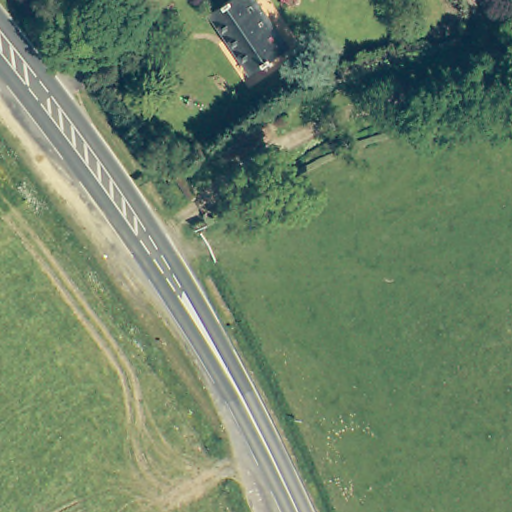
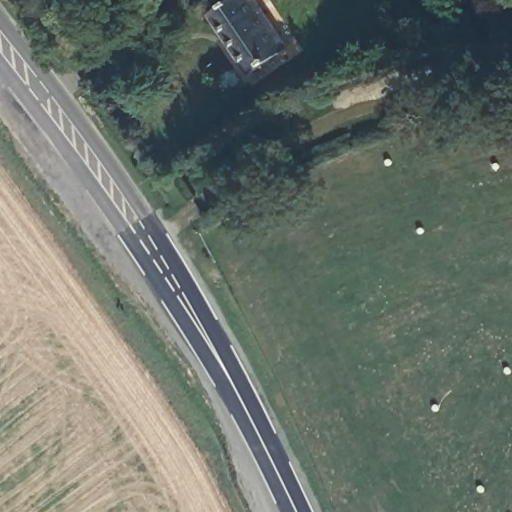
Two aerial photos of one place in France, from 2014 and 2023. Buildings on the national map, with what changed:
unchanged [(229,0),(257,0),(288,47),(252,72),(211,12),(229,0)]

